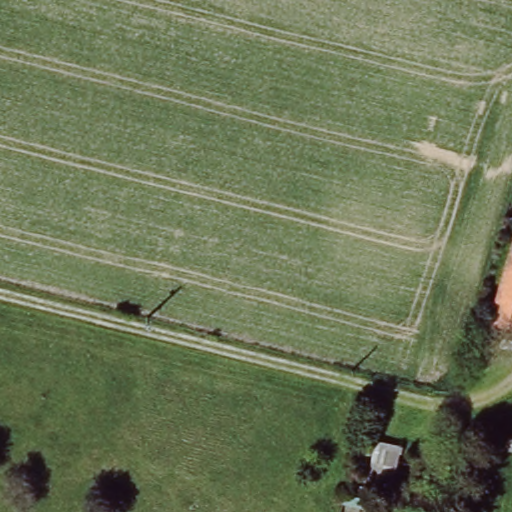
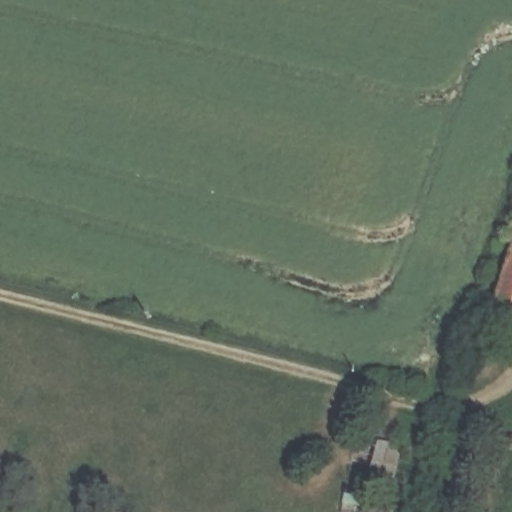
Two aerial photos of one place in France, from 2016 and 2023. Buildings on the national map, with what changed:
unchanged [(512,256),(512,312),(495,307),(512,256)]
unchanged [(403,451),(395,479),(369,473),(378,444),(403,451)]

